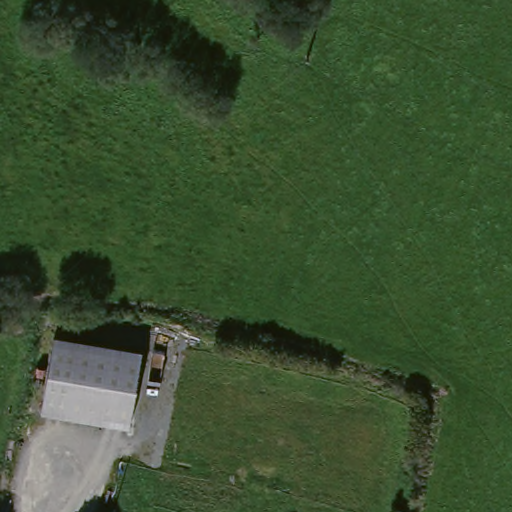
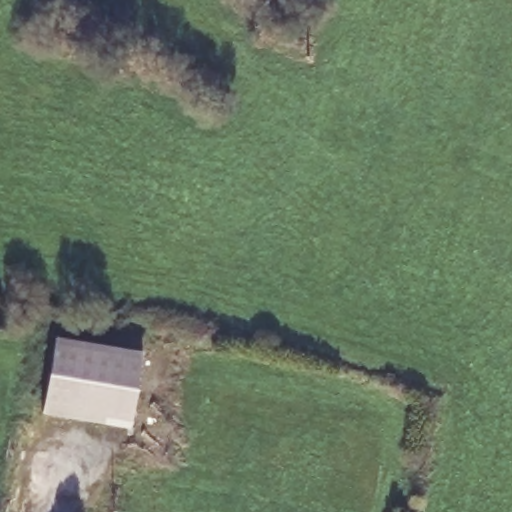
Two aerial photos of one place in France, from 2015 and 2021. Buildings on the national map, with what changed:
unchanged [(54,337),(141,352),(128,430),(40,414),(54,337)]

